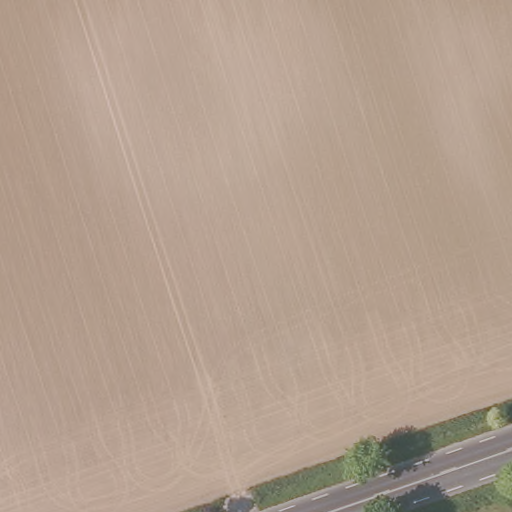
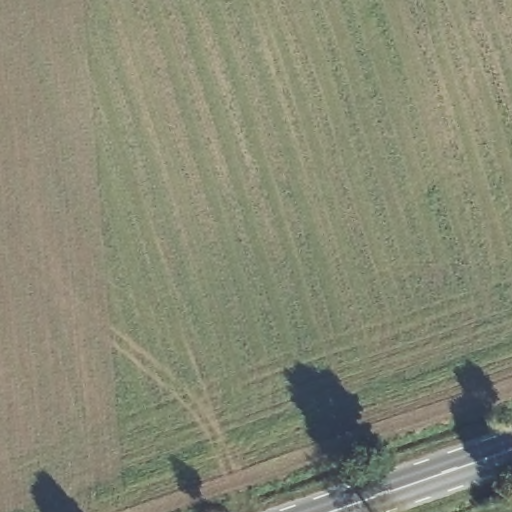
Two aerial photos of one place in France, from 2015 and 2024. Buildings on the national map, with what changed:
[]

